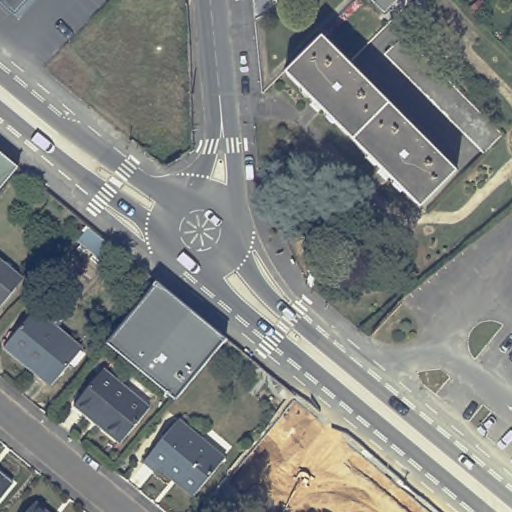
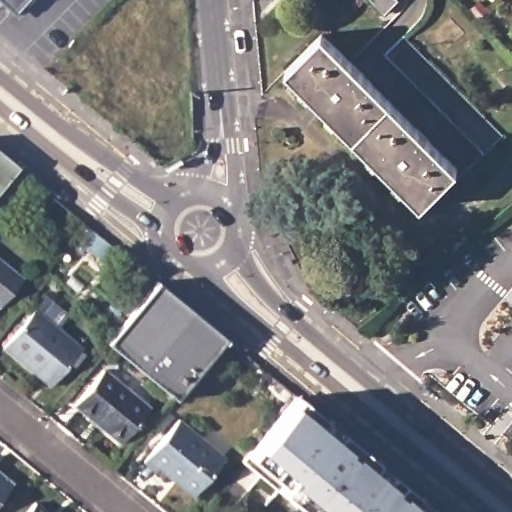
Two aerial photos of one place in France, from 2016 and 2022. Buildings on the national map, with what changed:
unchanged [(0,0),(30,0),(16,15),(0,0)]
unchanged [(371,0),(397,0),(384,13),(371,0)]
unchanged [(420,206),(285,70),(321,34),(457,170),(420,206)]
unchanged [(485,154),(384,55),(403,36),(504,134),(485,154)]
unchanged [(18,167),(0,188),(0,152),(18,167)]
unchanged [(25,279),(2,308),(0,307),(0,259),(25,279)]
unchanged [(220,345),(174,400),(103,342),(109,336),(110,334),(150,286),(220,345)]
unchanged [(37,310),(83,348),(52,386),(6,349),(37,310)]
unchanged [(101,369),(146,408),(116,443),(71,406),(101,369)]
demolished [(321,475),(323,473),(271,431),(301,395),(368,450),(337,487),(321,475)]
new [(275,490),(277,487),(243,460),(252,448),(289,403),(419,512),(301,512),(275,490)]
unchanged [(180,420),(226,458),(193,498),(157,469),(155,472),(145,463),(180,420)]
demolished [(356,502),(337,487),(368,450),(387,465),(356,502)]
unchanged [(12,481),(0,495),(0,471),(12,481)]
unchanged [(37,504),(47,512),(30,512),(37,504)]

